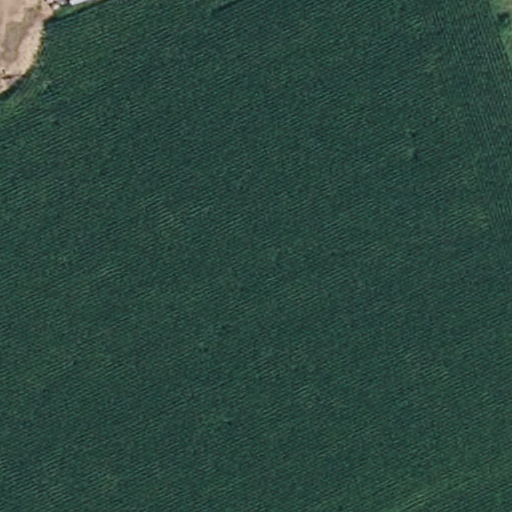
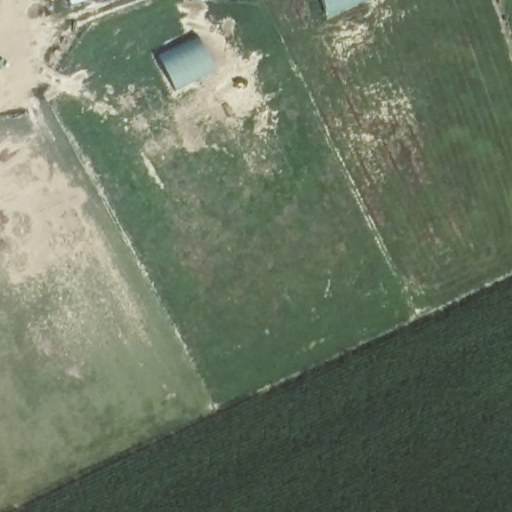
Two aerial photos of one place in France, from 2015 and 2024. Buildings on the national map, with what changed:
new [(323,0),(365,0),(328,15),(323,0)]
new [(177,91),(157,53),(198,34),(217,70),(177,91)]

